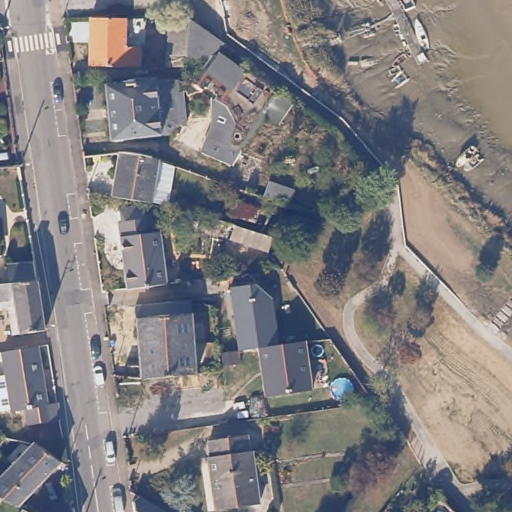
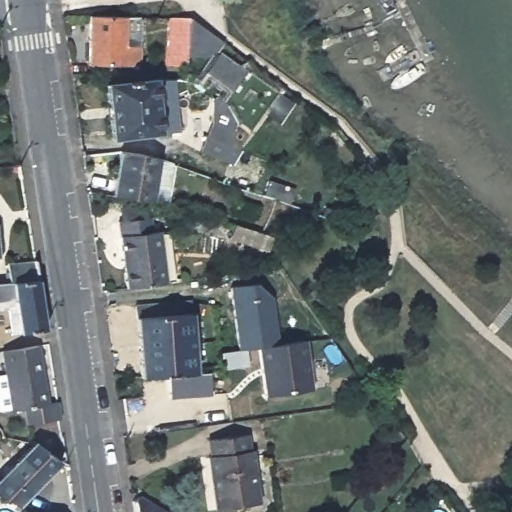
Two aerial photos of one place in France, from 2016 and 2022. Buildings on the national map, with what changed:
unchanged [(125,21),(125,50),(141,50),(140,70),(90,66),(91,21),(125,21)]
unchanged [(187,78),(204,79),(215,62),(190,58),(189,69),(171,67),(174,22),(193,22),(195,22),(227,46),(227,58),(242,70),(219,107),(216,105),(201,97),(192,99),(191,95),(182,98),(175,80),(187,80),(187,78)]
unchanged [(219,107),(242,70),(253,65),(290,93),(244,155),(235,169),(207,157),(218,129),(219,107)]
unchanged [(111,92),(154,85),(157,115),(162,115),(164,122),(159,124),(161,141),(120,147),(111,92)]
unchanged [(171,210),(156,205),(142,203),(115,199),(124,153),(161,162),(163,163),(178,170),(171,210)]
unchanged [(125,273),(116,225),(154,218),(156,231),(162,230),(171,283),(127,290),(125,273)]
unchanged [(270,249),(269,252),(230,239),(236,223),(257,231),(275,237),(270,249)]
unchanged [(7,255),(35,252),(37,271),(45,322),(21,326),(16,301),(0,303),(0,275),(9,275),(7,255)]
unchanged [(260,348),(241,350),(231,285),(258,282),(274,298),(280,345),(260,348)]
unchanged [(195,310),(202,382),(149,387),(139,315),(195,310)]
unchanged [(303,341),(310,390),(266,396),(260,348),(303,341)]
unchanged [(46,401),(56,400),(59,416),(28,421),(25,406),(13,408),(4,350),(37,344),(46,401)]
unchanged [(250,436),(252,450),(256,450),(263,503),(220,509),(212,456),(214,456),(212,441),(250,436)]
unchanged [(10,467),(32,445),(33,445),(60,461),(18,506),(3,498),(0,503),(0,477),(10,467)]
unchanged [(133,496),(157,512),(135,512),(133,496)]
unchanged [(35,510),(40,512),(34,512),(35,510)]

